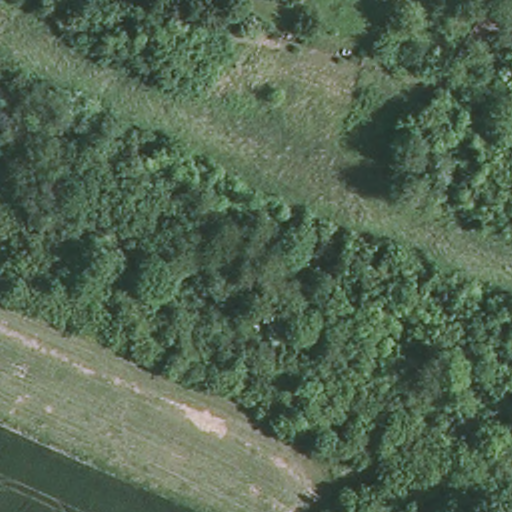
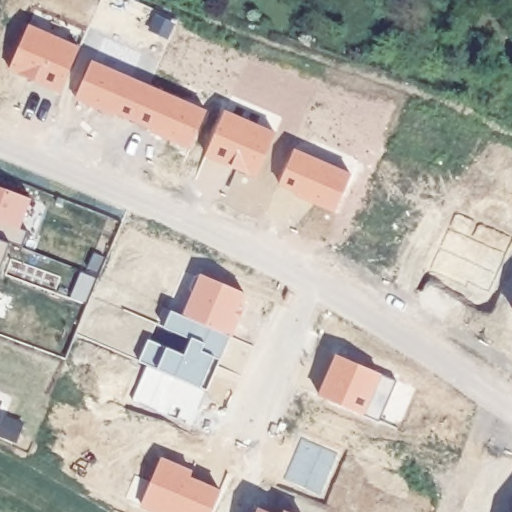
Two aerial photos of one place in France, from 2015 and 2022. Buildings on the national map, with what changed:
new [(175,24),(168,40),(150,31),(156,15),(175,24)]
new [(62,95),(9,74),(28,25),(78,47),(62,95)]
new [(192,150),(76,97),(92,61),(206,112),(192,150)]
new [(258,180),(206,159),(224,111),(275,133),(258,180)]
new [(336,214),(278,190),(294,151),(352,175),(336,214)]
new [(20,225),(27,230),(23,245),(11,241),(10,242),(0,269),(0,187),(31,198),(20,225)]
new [(488,292),(470,283),(467,286),(431,269),(456,212),(512,233),(512,237),(488,292)]
new [(85,306),(70,299),(80,274),(95,279),(85,306)]
new [(232,337),(183,315),(200,276),(249,295),(232,337)]
new [(232,337),(211,390),(141,361),(157,325),(164,330),(174,311),(183,315),(232,337)]
new [(395,380),(380,421),(321,395),(337,357),(395,380)]
new [(0,435),(0,431),(3,417),(24,425),(17,443),(0,435)]
new [(212,512),(159,512),(143,505),(163,458),(194,471),(190,475),(220,491),(212,512)]
new [(256,508),(264,512),(254,512),(256,508)]
new [(282,511),(283,512),(281,512),(282,511)]

